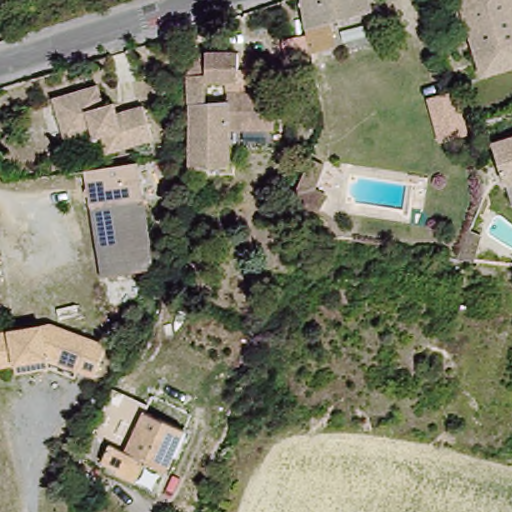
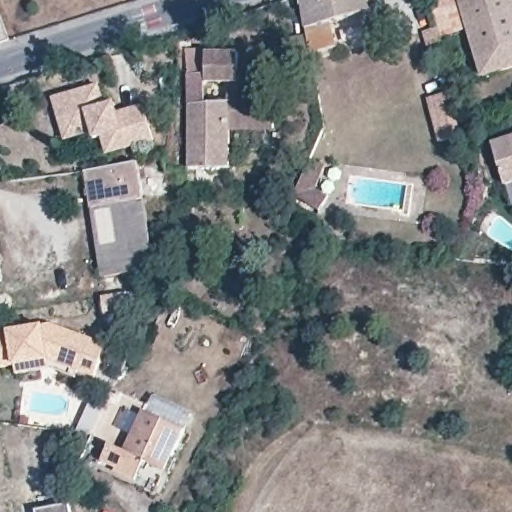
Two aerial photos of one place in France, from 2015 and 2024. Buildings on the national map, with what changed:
unchanged [(334,25),(343,52),(313,63),(309,0),(372,0),(374,12),(334,25)]
unchanged [(462,0),(512,0),(512,67),(485,76),(462,0)]
unchanged [(452,48),(438,50),(430,27),(443,22),(452,48)]
unchanged [(214,54),(245,54),(245,80),(214,80),(214,54)]
unchanged [(207,75),(207,101),(230,101),(227,171),(190,173),(189,95),(192,77),(207,75)]
unchanged [(98,138),(89,139),(87,130),(62,136),(53,94),(97,86),(104,119),(139,112),(148,147),(101,155),(98,138)]
unchanged [(461,89),(473,135),(439,144),(426,99),(461,89)]
unchanged [(512,135),(512,182),(504,185),(494,141),(512,135)]
unchanged [(309,156),(326,164),(315,185),(329,195),(319,215),(287,199),(309,156)]
unchanged [(129,166),(142,270),(100,275),(92,192),(89,174),(129,166)]
unchanged [(512,202),(504,185),(512,182),(512,202)]
unchanged [(5,263),(0,264),(0,237),(5,263)]
unchanged [(9,327),(50,321),(110,342),(98,376),(49,362),(0,367),(0,329),(9,327)]
unchanged [(96,430),(107,399),(120,402),(124,396),(152,411),(136,447),(114,438),(96,430)]
unchanged [(115,470),(102,465),(114,438),(136,447),(152,411),(189,427),(172,469),(163,490),(115,470)]
new [(35,510),(70,503),(72,512),(35,512),(35,510)]

